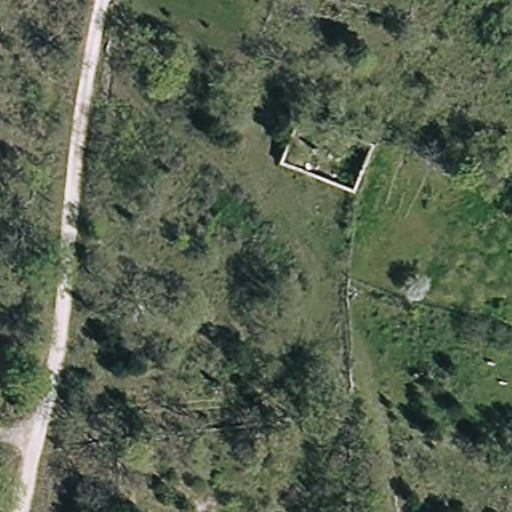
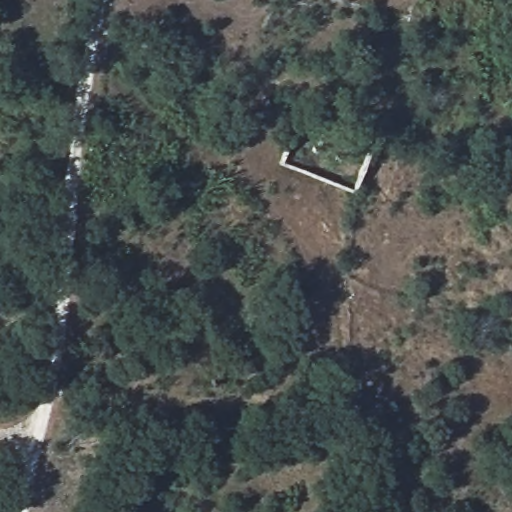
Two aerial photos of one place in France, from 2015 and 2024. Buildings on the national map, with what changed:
[]

